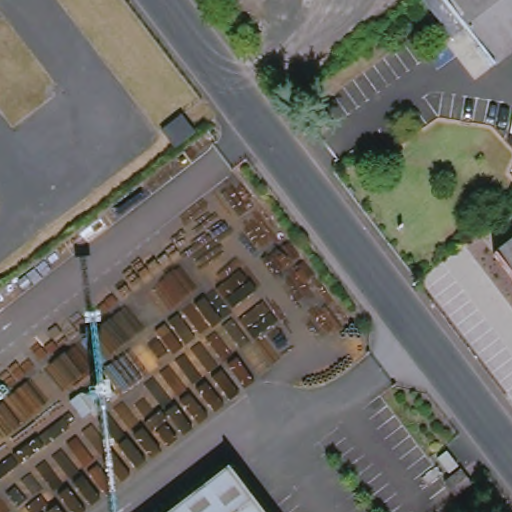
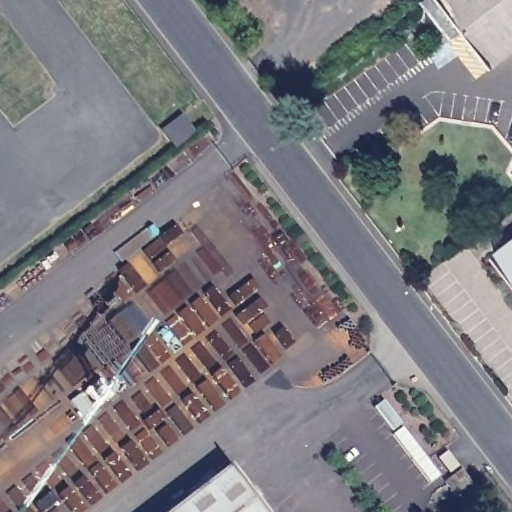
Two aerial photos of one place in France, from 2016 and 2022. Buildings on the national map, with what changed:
unchanged [(495,66),(467,30),(454,40),(423,0),(512,0),(512,53),(495,66)]
unchanged [(174,148),(162,131),(182,116),(195,132),(174,148)]
unchanged [(496,256),(512,243),(512,276),(496,256)]
unchanged [(447,452),(458,467),(450,474),(438,459),(447,452)]
unchanged [(227,469),(261,512),(172,512),(227,469)]
unchanged [(456,496),(446,482),(461,471),(471,484),(456,496)]

